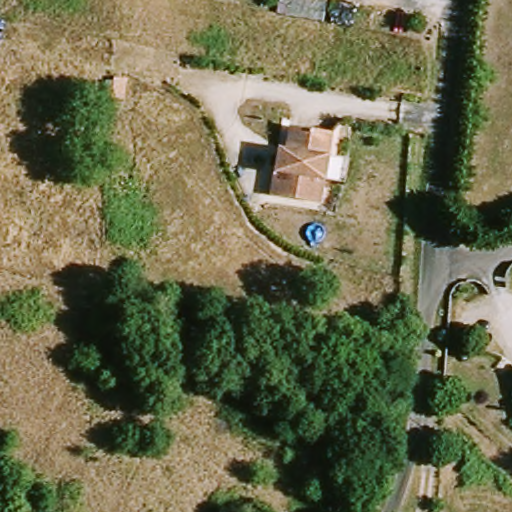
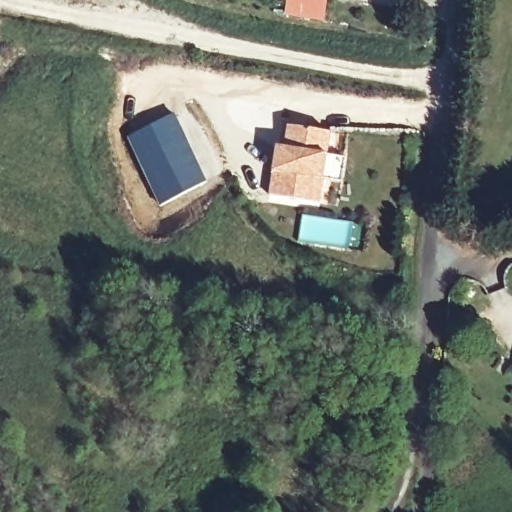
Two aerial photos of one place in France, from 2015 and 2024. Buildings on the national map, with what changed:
new [(202,180),(162,199),(133,139),(174,121),(202,180)]
unchanged [(346,189),(326,186),(323,208),(274,201),(275,187),(281,154),(288,155),(291,133),(334,139),(330,162),(350,165),(346,189)]

